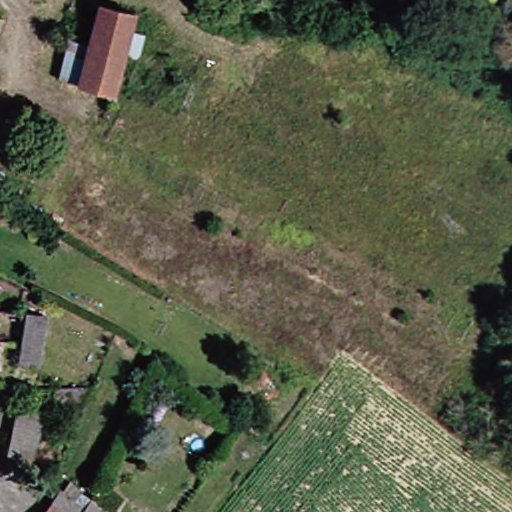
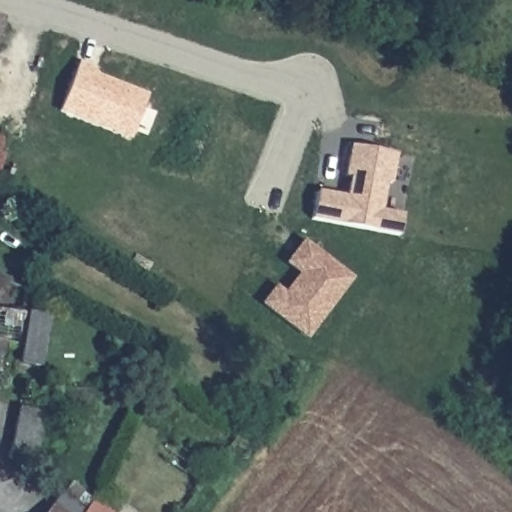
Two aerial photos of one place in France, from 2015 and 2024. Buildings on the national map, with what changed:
demolished [(112,98),(78,89),(88,49),(98,9),(134,18),(112,98)]
unchanged [(0,26),(0,17),(2,18),(0,26)]
new [(130,139),(60,110),(80,60),(97,67),(95,73),(150,95),(130,139)]
demolished [(41,210),(16,198),(50,133),(73,145),(41,210)]
new [(395,181),(387,183),(383,210),(404,213),(400,235),(311,219),(316,190),(346,196),(349,176),(345,175),(350,145),(398,152),(395,181)]
unchanged [(0,183),(0,159),(8,163),(0,183)]
new [(307,339),(260,304),(275,284),(285,291),(298,275),(285,263),(303,239),(355,279),(307,339)]
unchanged [(46,316),(37,366),(18,363),(20,344),(17,344),(21,312),(46,316)]
unchanged [(2,362),(0,362),(0,343),(4,343),(2,362)]
unchanged [(47,410),(55,388),(80,387),(94,386),(80,421),(69,419),(47,410)]
unchanged [(17,406),(46,413),(25,465),(6,457),(17,406)]
unchanged [(80,508),(77,512),(42,512),(56,491),(80,508)]
unchanged [(86,498),(109,512),(77,512),(80,508),(86,498)]

